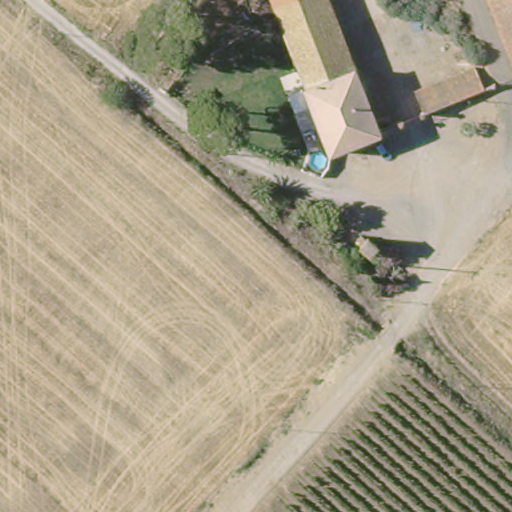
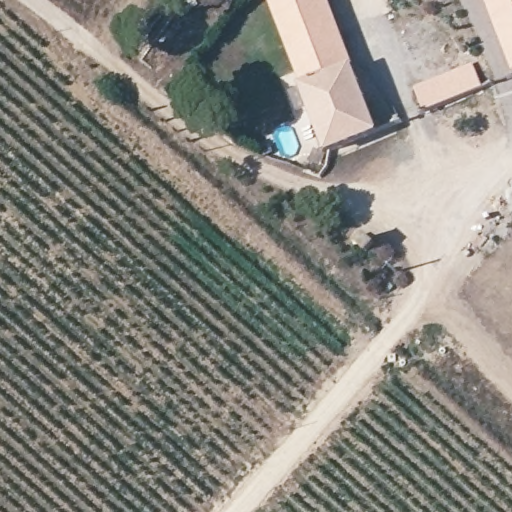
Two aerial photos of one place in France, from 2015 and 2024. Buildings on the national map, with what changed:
unchanged [(274,0),(328,0),(354,70),(307,88),(274,0)]
unchanged [(512,0),(512,52),(491,0),(512,0)]
unchanged [(412,91),(472,68),(481,90),(421,115),(412,91)]
unchanged [(388,120),(391,129),(332,153),(307,88),(354,70),(375,125),(388,120)]

